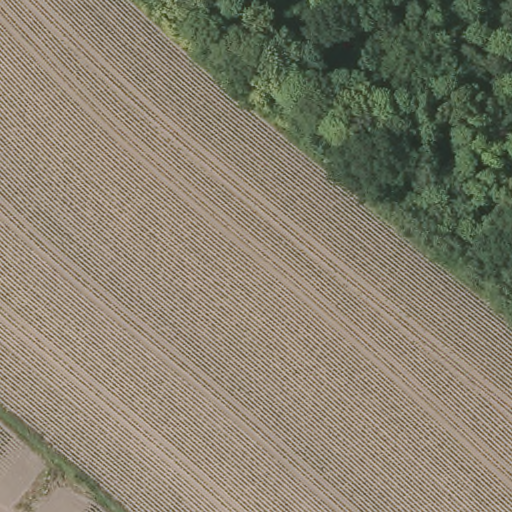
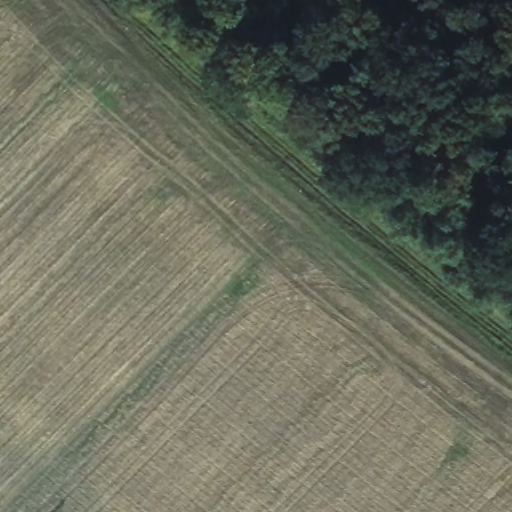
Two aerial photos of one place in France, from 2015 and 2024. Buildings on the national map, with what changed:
[]

